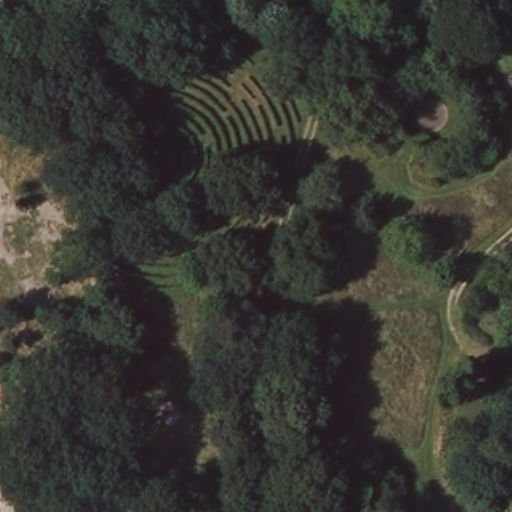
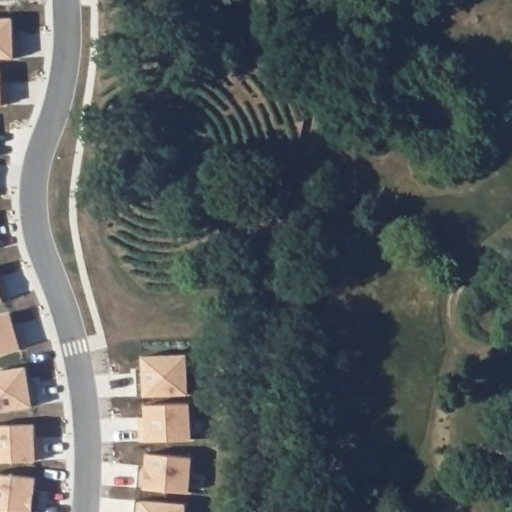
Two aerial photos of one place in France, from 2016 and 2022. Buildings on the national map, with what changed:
new [(12,17),(13,32),(18,32),(19,57),(13,58),(0,58),(0,18),(12,17)]
new [(0,83),(7,83),(8,105),(1,106),(0,106),(0,69),(0,83)]
new [(3,302),(0,303),(0,293),(3,302)]
new [(10,312),(15,331),(22,329),(27,347),(21,349),(0,355),(0,316),(10,312)]
new [(141,356),(186,355),(187,395),(142,396),(136,397),(135,371),(141,371),(141,356)]
new [(25,367),(27,379),(34,378),(38,405),(32,407),(0,412),(0,371),(25,367)]
new [(146,442),(139,442),(137,420),(145,419),(144,406),(189,403),(191,440),(146,442)]
new [(34,424),(35,438),(43,438),(43,462),(36,462),(0,463),(0,425),(34,424)]
new [(143,488),(136,487),(138,466),(145,466),(146,453),(191,457),(189,493),(143,488)]
new [(35,478),(34,492),(40,492),(38,512),(0,512),(0,475),(35,478)]
unchanged [(363,497),(384,507),(385,512),(347,512),(363,497)]
new [(136,500),(141,500),(186,504),(185,512),(135,512),(136,500)]

